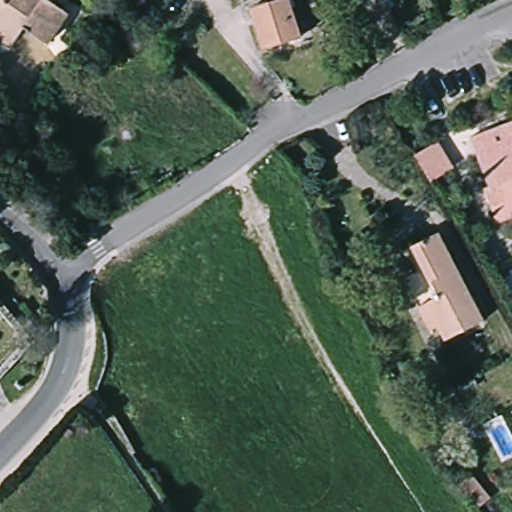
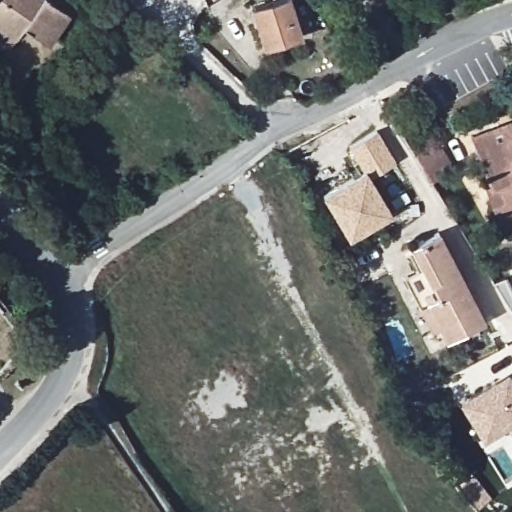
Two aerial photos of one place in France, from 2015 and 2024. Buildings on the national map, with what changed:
unchanged [(32,25),(25,36),(0,20),(0,0),(50,0),(61,0),(74,11),(54,40),(32,25)]
unchanged [(267,52),(256,10),(282,0),(296,0),(309,42),(267,52)]
unchanged [(495,137),(512,129),(512,176),(492,186),(479,143),(495,137)]
new [(392,213),(348,238),(323,196),(364,171),(349,147),(377,131),(396,163),(369,175),(392,213)]
new [(438,142),(453,167),(432,182),(416,156),(438,142)]
unchanged [(492,186),(512,176),(512,214),(505,191),(494,194),(492,186)]
unchanged [(437,293),(416,247),(445,234),(484,325),(450,340),(431,296),(437,293)]
new [(505,276),(512,291),(512,311),(493,281),(505,276)]
new [(510,429),(509,427),(484,443),(459,401),(508,372),(512,378),(512,435),(509,430),(510,429)]

